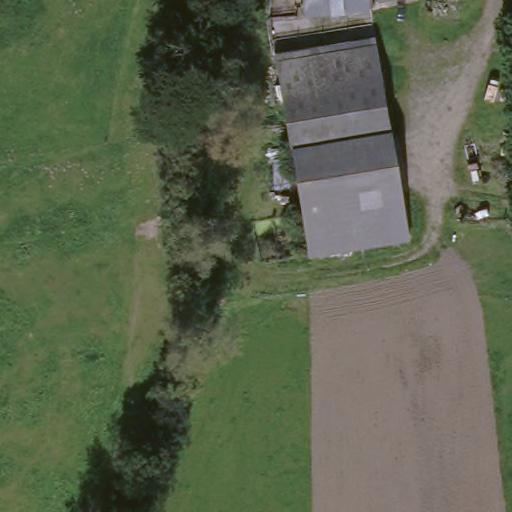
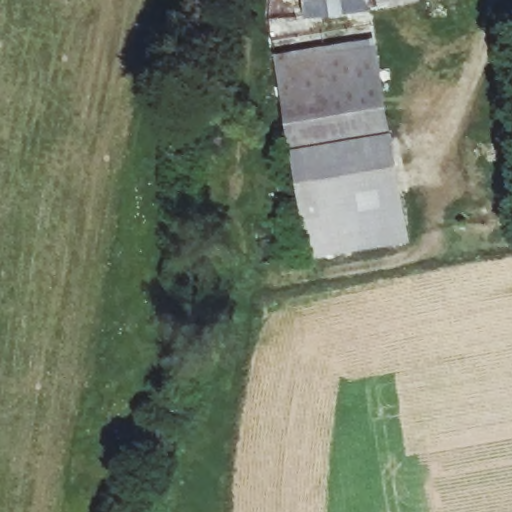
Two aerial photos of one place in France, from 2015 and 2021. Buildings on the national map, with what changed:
unchanged [(303,14),(302,0),(367,0),(368,7),(303,14)]
unchanged [(377,2),(376,0),(391,0),(377,2)]
unchanged [(309,254),(276,59),(375,44),(408,236),(309,254)]

